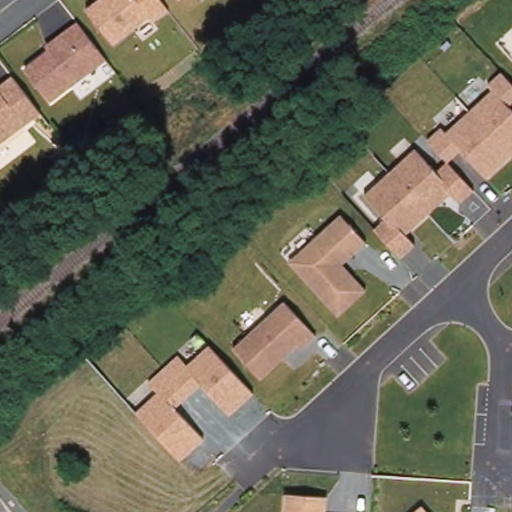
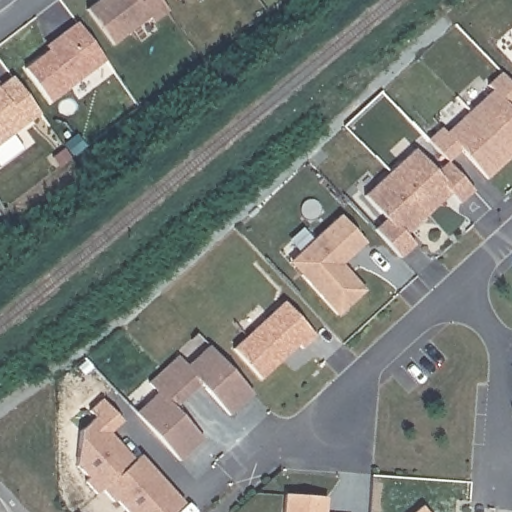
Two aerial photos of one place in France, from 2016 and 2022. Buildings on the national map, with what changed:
unchanged [(168,15),(164,9),(128,37),(101,2),(103,0),(182,0),(184,2),(168,15)]
unchanged [(60,39),(78,25),(92,15),(93,17),(121,52),(65,95),(39,62),(64,43),(60,39)]
unchanged [(55,107),(0,150),(0,149),(0,79),(7,74),(12,81),(27,70),(55,107)]
unchanged [(512,105),(509,107),(512,110),(512,160),(486,182),(459,154),(445,166),(426,142),(441,129),(446,134),(491,93),(485,89),(501,75),(512,86),(512,105)]
unchanged [(89,124),(98,136),(87,144),(78,132),(89,124)]
unchanged [(436,172),(445,166),(448,162),(473,191),(460,206),(449,195),(406,235),(415,246),(400,259),(372,229),(383,220),(364,197),(415,149),(436,172)]
unchanged [(367,244),(342,266),(366,292),(337,318),(286,262),(342,213),(367,244)]
unchanged [(316,336),(302,349),(297,345),(261,380),(232,348),(284,300),(316,336)]
unchanged [(254,393),(229,417),(199,386),(174,408),(203,440),(178,462),(135,413),(157,392),(147,382),(178,356),(187,365),(210,347),(254,393)]
new [(173,512),(128,512),(118,500),(116,502),(103,488),(97,493),(85,481),(88,477),(76,464),(80,430),(95,418),(89,410),(103,400),(123,422),(110,432),(135,460),(141,455),(183,502),(173,512)]
unchanged [(346,485),(344,506),(371,507),(371,512),(302,512),(304,482),(346,485)]
unchanged [(456,512),(421,512),(441,495),(456,512)]

